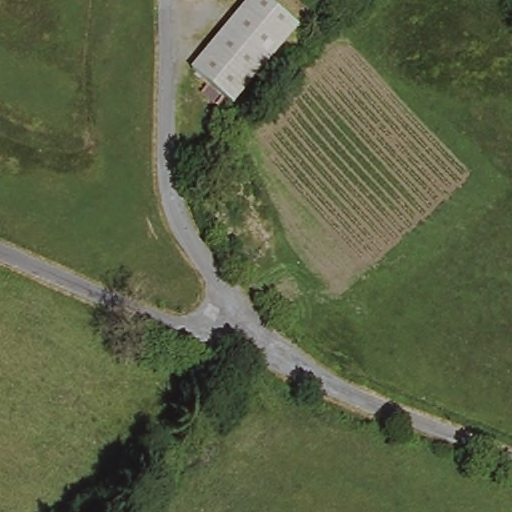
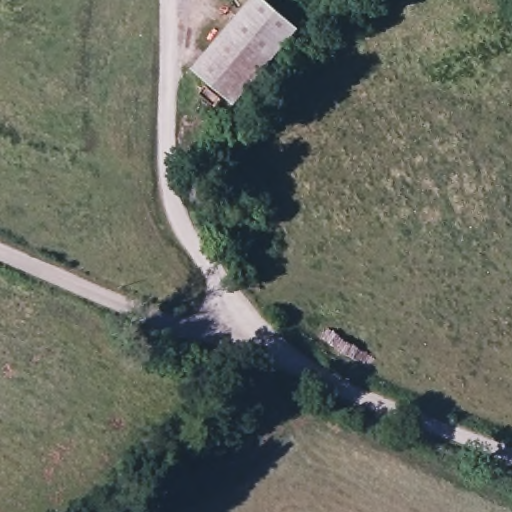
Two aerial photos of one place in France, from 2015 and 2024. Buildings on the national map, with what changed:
unchanged [(273,0),(303,25),(237,102),(192,66),(248,0),(273,0)]

